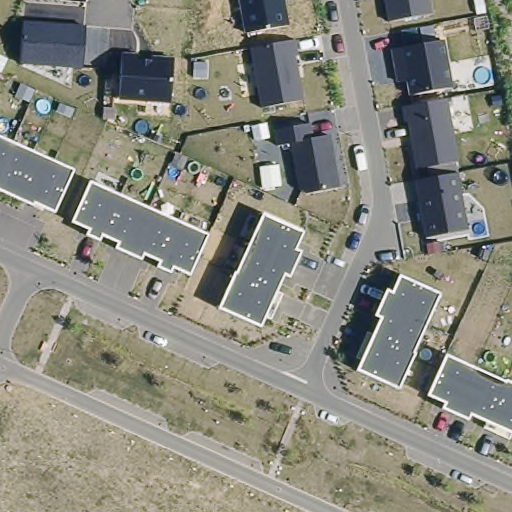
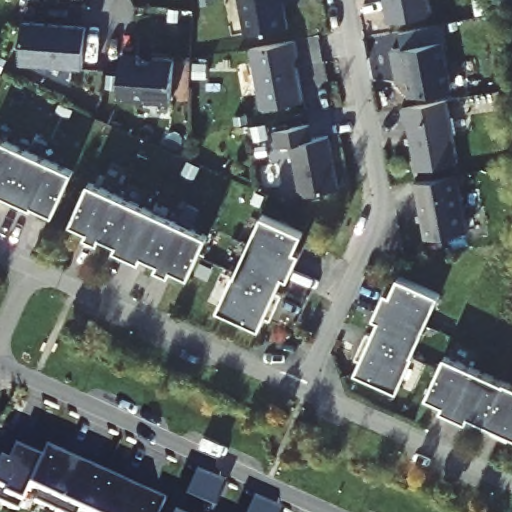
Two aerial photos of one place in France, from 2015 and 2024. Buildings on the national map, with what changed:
unchanged [(239,0),(285,0),(290,25),(246,34),(239,0)]
unchanged [(389,22),(385,0),(431,0),(434,13),(389,22)]
unchanged [(85,26),(84,68),(21,63),(23,22),(85,26)]
unchanged [(251,50),(297,40),(300,55),(296,55),(305,98),(262,107),(251,50)]
unchanged [(409,95),(406,81),(398,84),(391,47),(443,40),(453,87),(409,95)]
unchanged [(139,54),(138,59),(151,60),(151,56),(174,58),(171,103),(120,99),(122,53),(139,54)]
unchanged [(414,180),(430,176),(427,167),(414,170),(407,125),(404,126),(401,109),(448,100),(461,161),(456,161),(459,173),(469,229),(425,238),(414,180)]
unchanged [(301,190),(291,143),(278,145),(275,130),(311,125),(315,139),(331,136),(341,186),(306,194),(301,190)]
unchanged [(34,202),(32,205),(0,192),(0,137),(72,170),(54,212),(34,202)]
unchanged [(190,274),(173,267),(170,272),(156,267),(159,261),(143,254),(141,259),(116,249),(119,242),(102,236),(99,241),(87,235),(89,229),(72,222),(90,181),(208,235),(190,274)]
unchanged [(303,231),(295,250),(300,252),(289,276),(283,275),(260,326),(219,308),(236,272),(238,273),(263,215),(303,231)]
unchanged [(381,318),(374,316),(385,290),(393,292),(399,276),(440,294),(398,390),(357,371),(381,318)]
unchanged [(509,439),(483,428),(485,424),(487,421),(470,415),(467,420),(442,410),(445,402),(427,395),(447,353),(512,383),(512,432),(512,434),(509,439)]
new [(80,512),(58,512),(35,502),(42,493),(29,486),(19,510),(0,502),(0,461),(8,443),(41,459),(47,448),(64,456),(70,442),(97,454),(91,468),(122,481),(128,467),(154,478),(148,493),(163,500),(161,506),(173,512),(87,512),(81,510),(80,512)]

